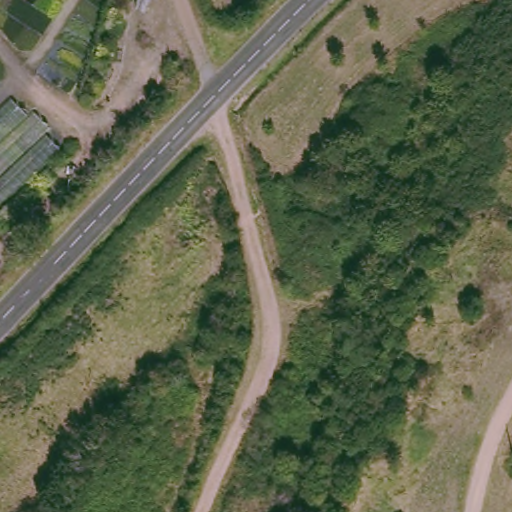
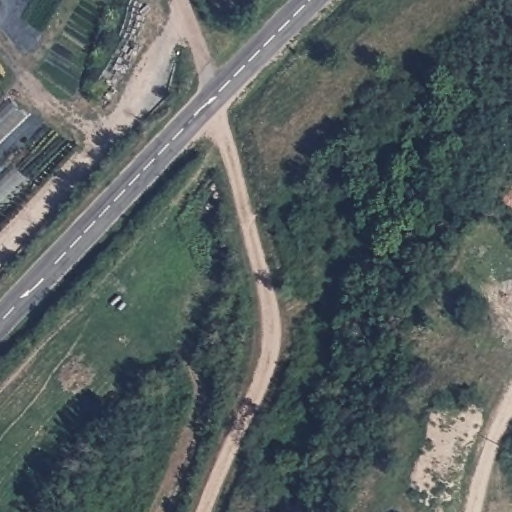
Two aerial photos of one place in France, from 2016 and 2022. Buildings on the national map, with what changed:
unchanged [(33,111),(50,128),(43,135),(60,150),(0,208),(0,110),(12,99),(28,116),(33,111)]

